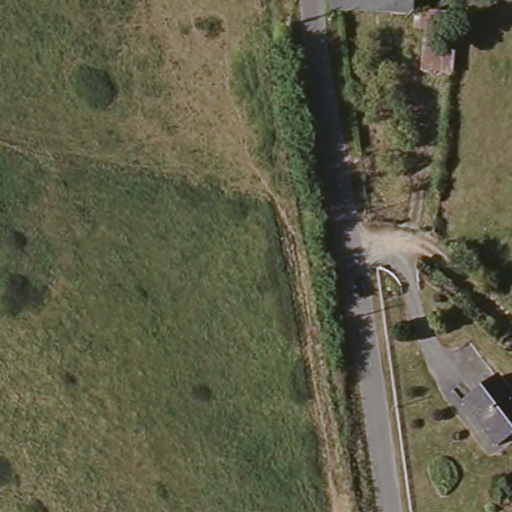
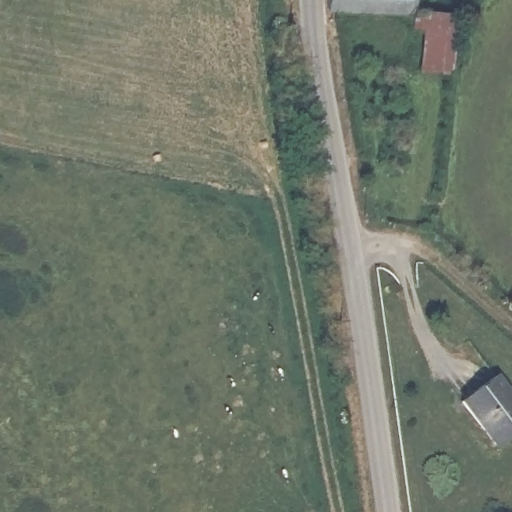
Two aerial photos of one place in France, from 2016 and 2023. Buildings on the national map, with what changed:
unchanged [(333,0),(412,0),(411,18),(341,7),(332,7),(333,0)]
unchanged [(426,81),(435,25),(469,29),(457,87),(426,81)]
unchanged [(512,399),(512,432),(493,445),(463,399),(498,377),(512,399)]

